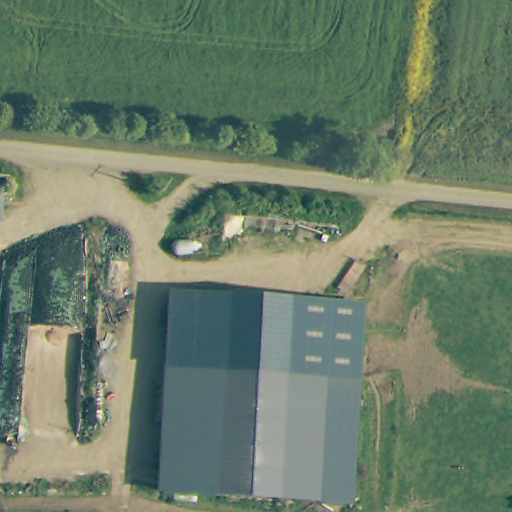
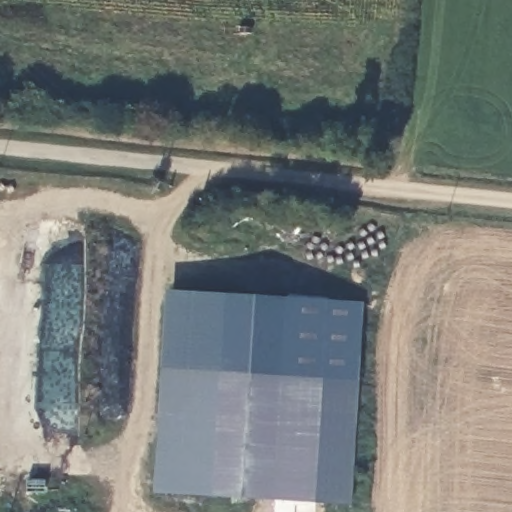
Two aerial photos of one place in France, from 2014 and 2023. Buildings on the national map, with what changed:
unchanged [(0,223),(0,175),(6,175),(2,223),(0,223)]
unchanged [(351,382),(327,380),(169,370),(162,369),(168,291),(364,305),(357,382),(352,382),(351,382)]
unchanged [(161,492),(169,370),(327,380),(351,382),(352,382),(344,504),(161,492)]

